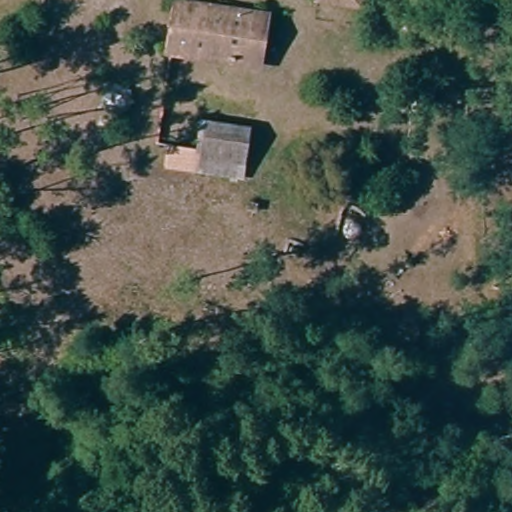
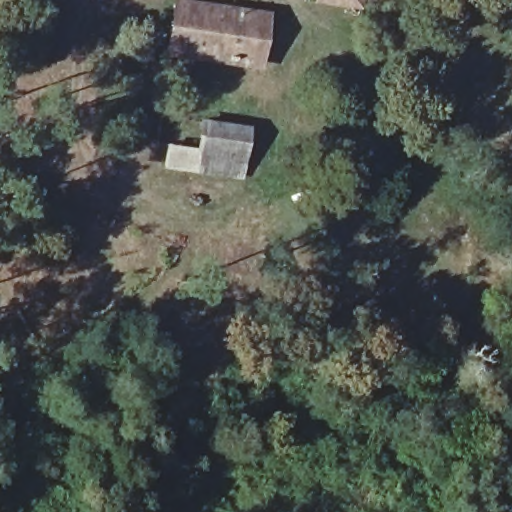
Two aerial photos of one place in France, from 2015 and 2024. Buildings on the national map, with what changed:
unchanged [(318,6),(318,0),(369,0),(367,12),(318,6)]
unchanged [(267,16),(260,64),(175,54),(179,6),(267,16)]
unchanged [(211,124),(260,130),(256,154),(207,148),(211,124)]
unchanged [(251,180),(203,173),(207,148),(256,154),(251,180)]

